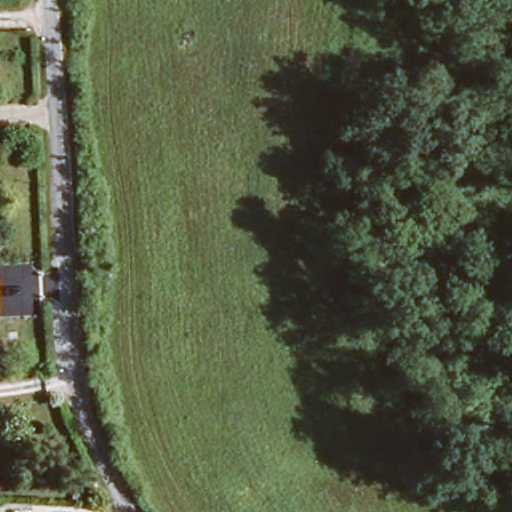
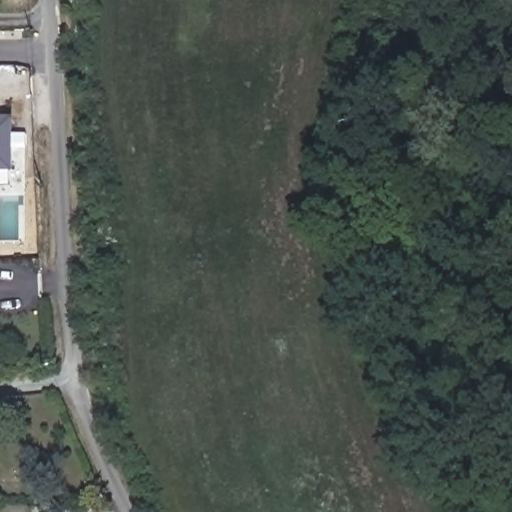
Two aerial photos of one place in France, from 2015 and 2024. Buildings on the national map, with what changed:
new [(14,118),(14,171),(0,172),(0,118),(14,118)]

